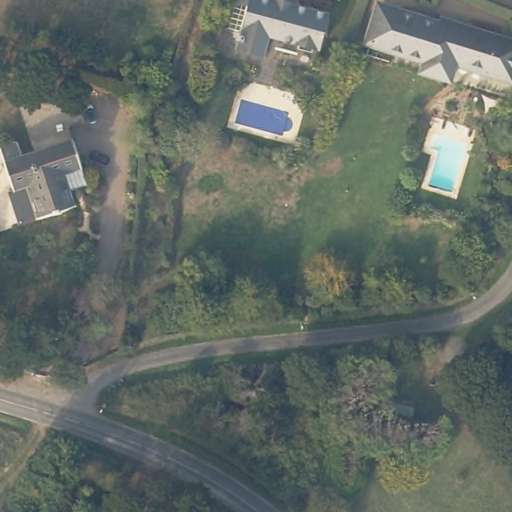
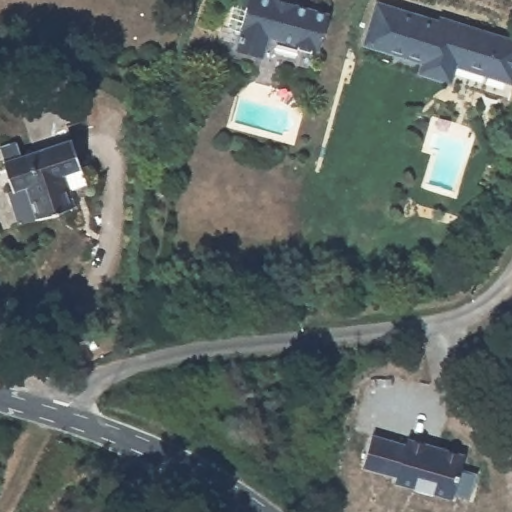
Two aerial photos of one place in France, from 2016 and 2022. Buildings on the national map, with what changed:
unchanged [(294,4),(330,12),(322,50),(271,37),(266,59),(240,51),(245,30),(232,26),(238,0),(280,0),(282,0),(294,4)]
unchanged [(465,71),(462,89),(420,78),(422,65),(362,50),(374,5),(512,43),(512,86),(465,71)]
unchanged [(26,152),(75,138),(83,165),(66,170),(75,202),(41,212),(30,180),(16,184),(3,142),(21,137),(26,152)]
unchanged [(30,180),(41,215),(19,222),(10,195),(19,193),(16,184),(30,180)]
new [(397,475),(365,467),(373,433),(407,441),(409,437),(465,452),(452,497),(395,483),(397,475)]

